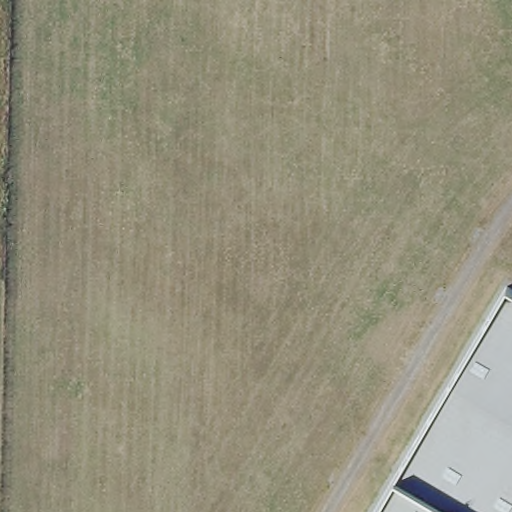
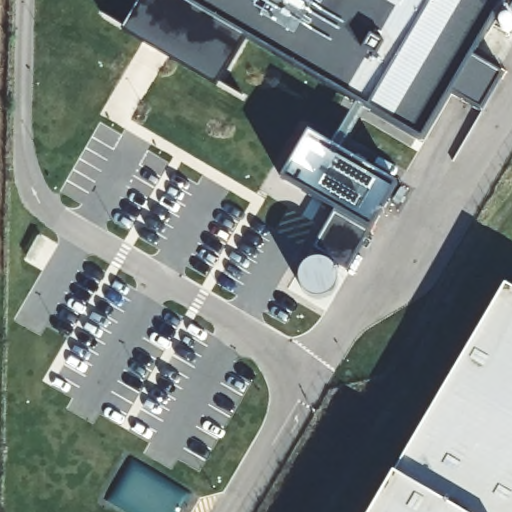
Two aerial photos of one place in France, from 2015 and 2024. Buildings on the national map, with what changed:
new [(245,37),(216,86),(124,32),(143,0),(182,0),(245,37)]
new [(421,140),(181,0),(499,0),(421,140)]
new [(482,112),(448,91),(469,54),(503,74),(482,112)]
new [(397,186),(372,229),(348,270),(316,251),(338,211),(283,179),(309,133),(397,186)]
unchanged [(507,287),(512,291),(512,512),(373,512),(394,475),(507,287)]

